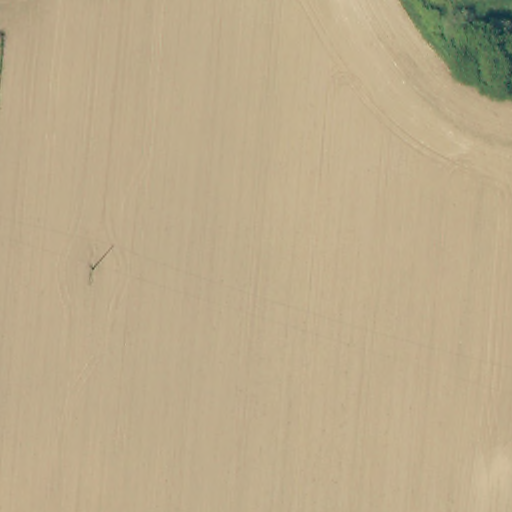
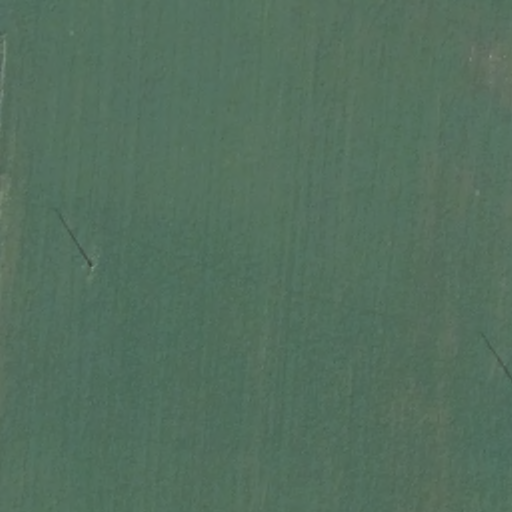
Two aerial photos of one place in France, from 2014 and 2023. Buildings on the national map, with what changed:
[]

